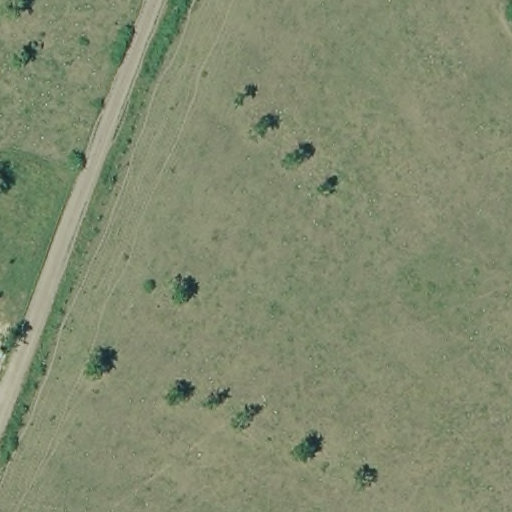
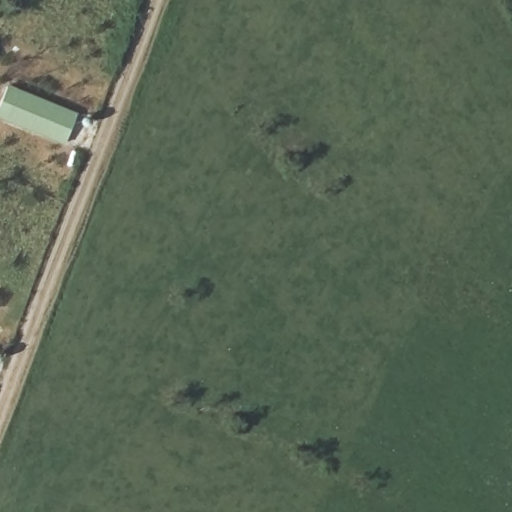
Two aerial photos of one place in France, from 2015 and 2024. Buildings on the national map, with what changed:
new [(0,120),(0,95),(3,85),(73,113),(61,144),(0,120)]

